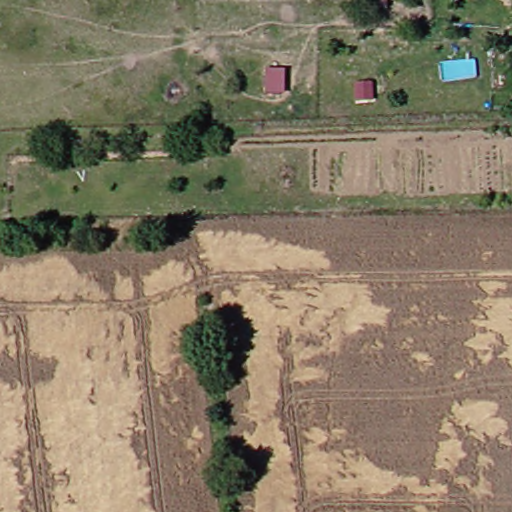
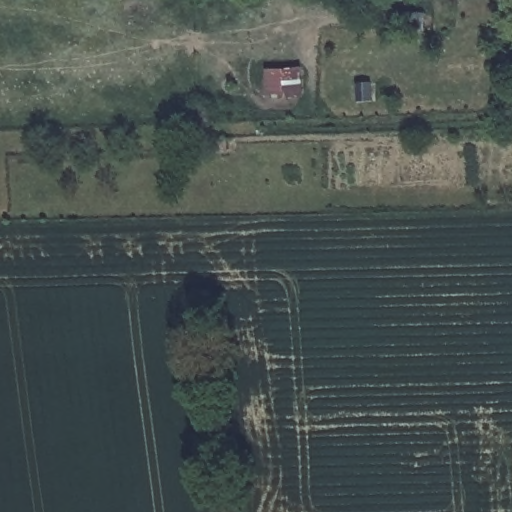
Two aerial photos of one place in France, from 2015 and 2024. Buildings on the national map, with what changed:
[]

